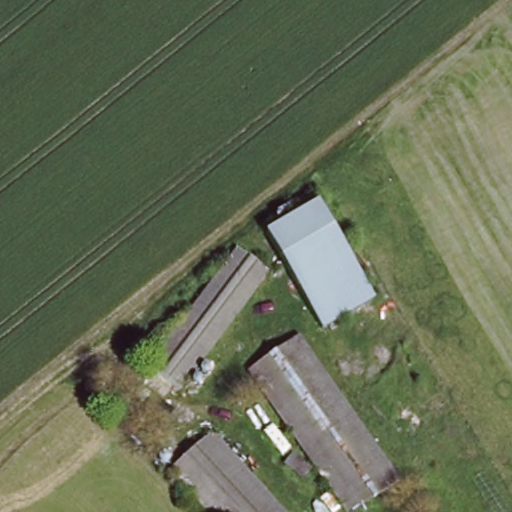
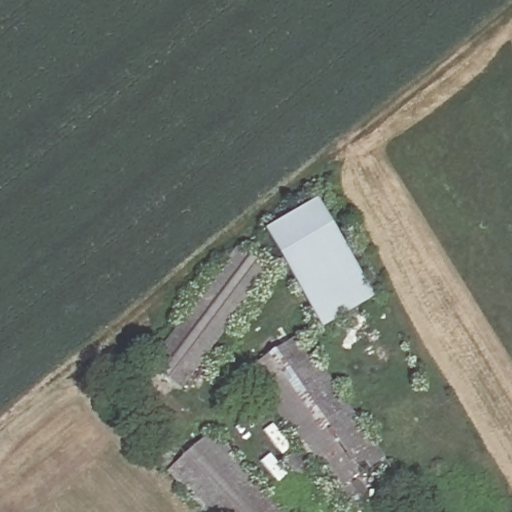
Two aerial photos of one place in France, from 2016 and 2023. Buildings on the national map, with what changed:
unchanged [(371,287),(323,317),(273,231),(320,201),(371,287)]
unchanged [(266,271),(177,390),(148,369),(237,250),(266,271)]
unchanged [(346,512),(246,373),(298,335),(400,479),(352,512),(346,512)]
unchanged [(204,512),(166,470),(210,430),(283,512),(204,512)]

